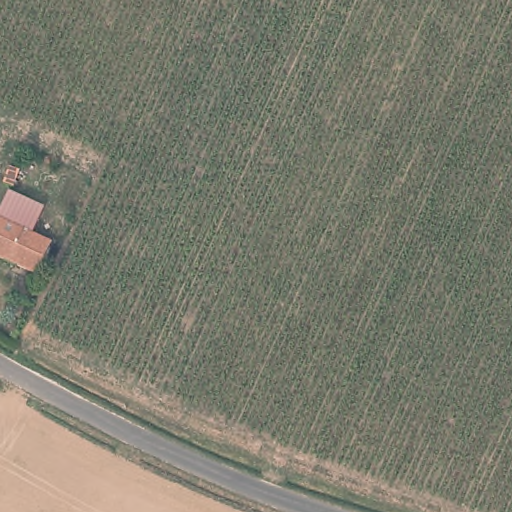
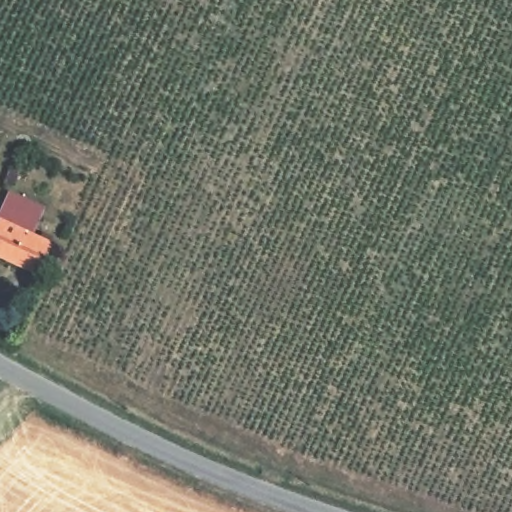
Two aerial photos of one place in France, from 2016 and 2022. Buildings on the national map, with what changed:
unchanged [(40,273),(0,255),(0,217),(6,220),(12,206),(31,215),(26,228),(54,241),(40,273)]

